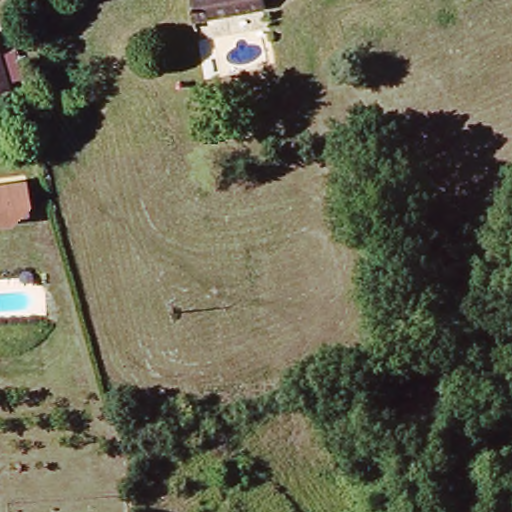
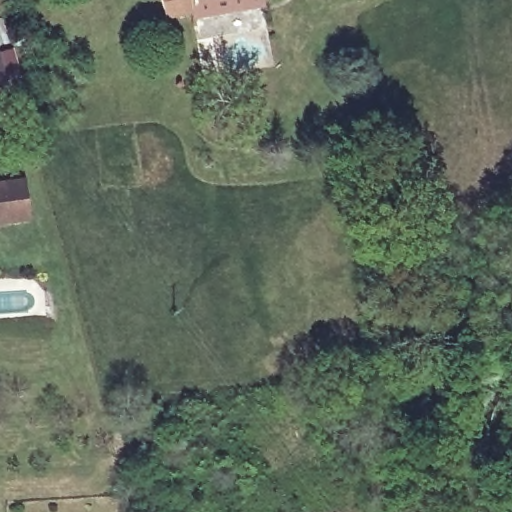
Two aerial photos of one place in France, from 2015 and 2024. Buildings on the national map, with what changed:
unchanged [(193,0),(263,0),(263,3),(195,16),(193,0)]
unchanged [(0,84),(0,70),(3,82),(0,84)]
unchanged [(30,214),(0,223),(0,184),(18,178),(30,214)]

